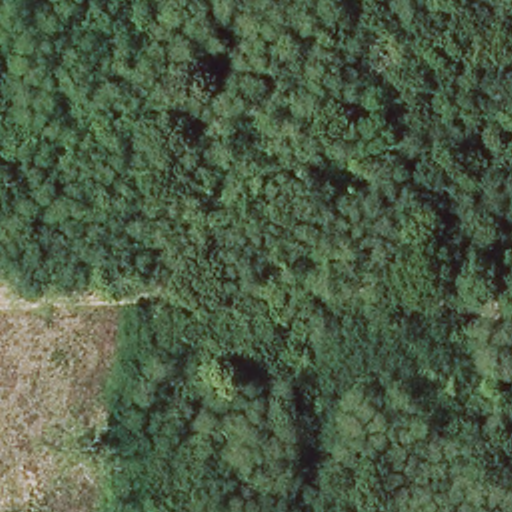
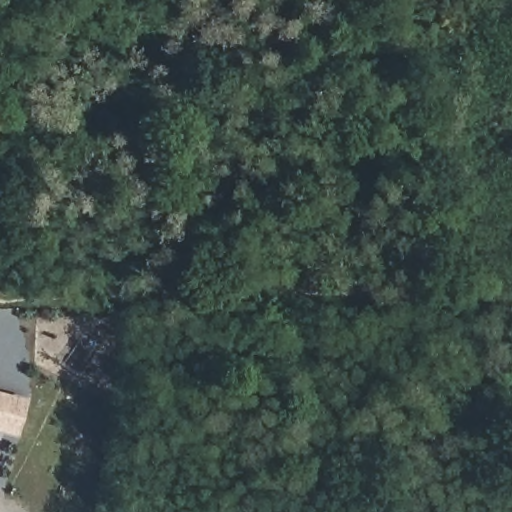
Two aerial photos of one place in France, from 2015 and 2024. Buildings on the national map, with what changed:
new [(26,398),(16,436),(0,431),(0,392),(26,398)]

